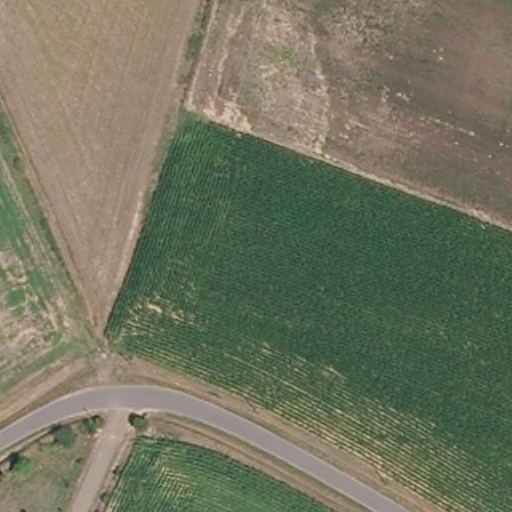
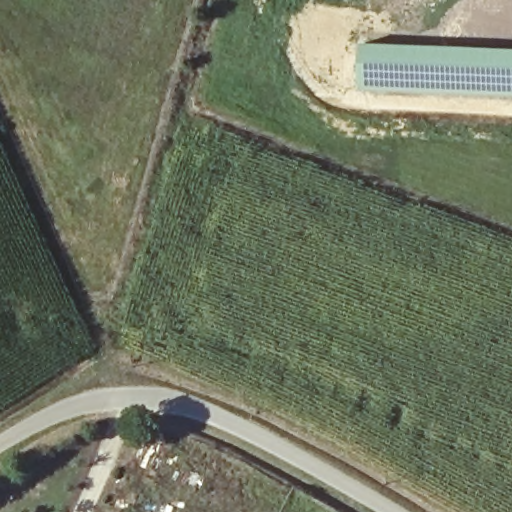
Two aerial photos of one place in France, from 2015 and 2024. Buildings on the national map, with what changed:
new [(512,49),(512,97),(360,91),(362,43),(512,49)]

